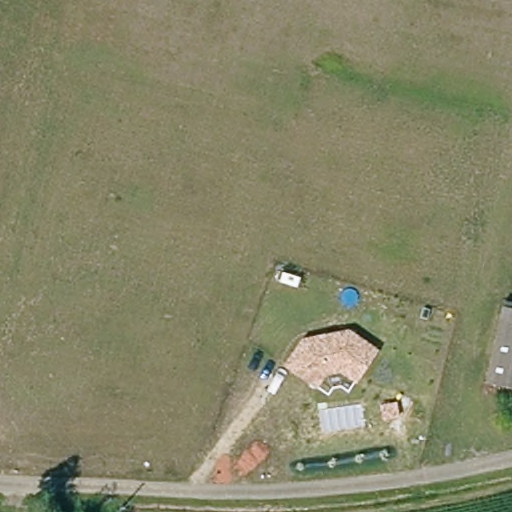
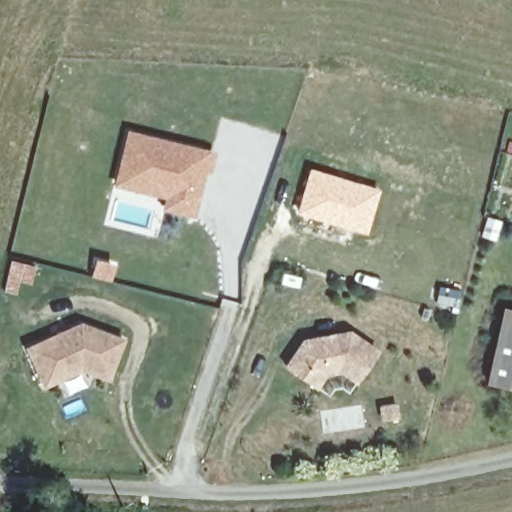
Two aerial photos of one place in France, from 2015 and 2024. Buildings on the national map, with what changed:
new [(216,151),(211,173),(205,171),(194,217),(161,210),(164,198),(113,186),(126,130),(216,151)]
new [(309,166),(381,187),(367,235),(295,212),(309,166)]
unchanged [(487,378),(507,310),(512,312),(512,385),(487,378)]
new [(81,321),(124,338),(109,379),(80,370),(43,386),(24,347),(81,321)]
unchanged [(359,383),(342,372),(326,375),(319,388),(285,366),(301,339),(347,330),(378,350),(359,383)]

